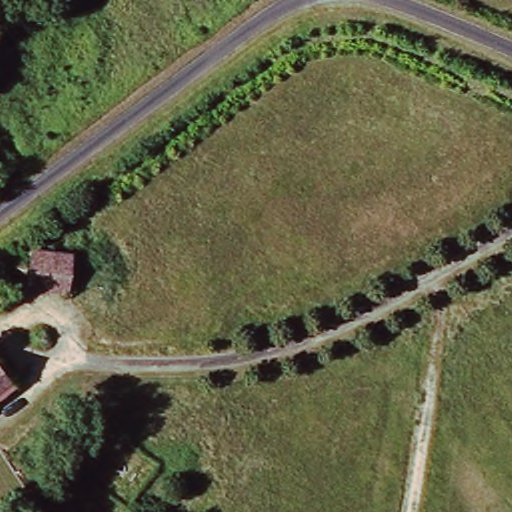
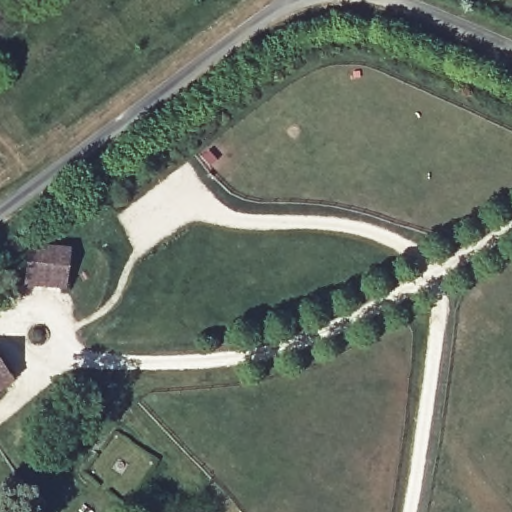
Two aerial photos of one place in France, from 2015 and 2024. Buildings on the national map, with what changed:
unchanged [(26,284),(30,246),(68,251),(64,289),(26,284)]
unchanged [(0,389),(0,361),(14,379),(0,389)]
unchanged [(104,463),(79,479),(58,447),(83,431),(104,463)]

